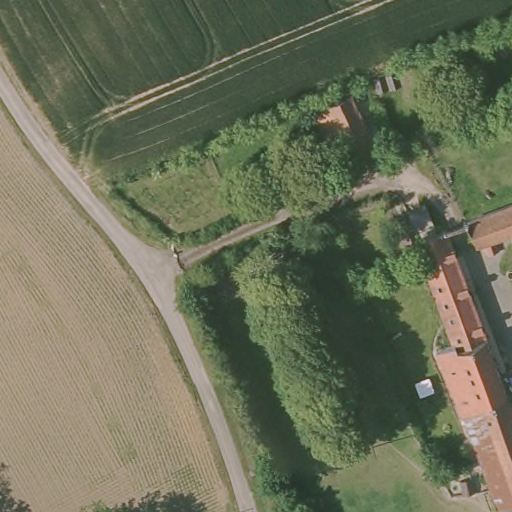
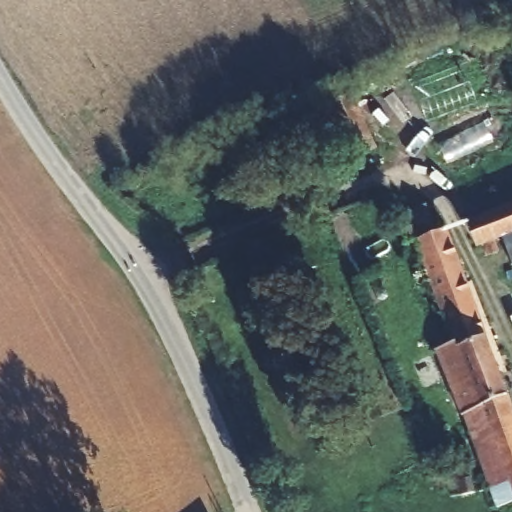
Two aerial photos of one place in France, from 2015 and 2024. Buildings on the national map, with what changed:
unchanged [(336,106),(351,100),(375,155),(362,160),(341,170),(315,116),(336,106)]
unchanged [(300,123),(315,116),(341,170),(325,178),(300,123)]
unchanged [(512,205),(512,235),(477,249),(466,222),(512,205)]
unchanged [(425,252),(412,219),(429,212),(440,241),(450,238),(470,293),(512,406),(512,507),(503,510),(481,453),(467,417),(462,420),(450,388),(438,357),(443,355),(441,351),(446,348),(450,355),(456,352),(451,338),(421,253),(425,252)]

